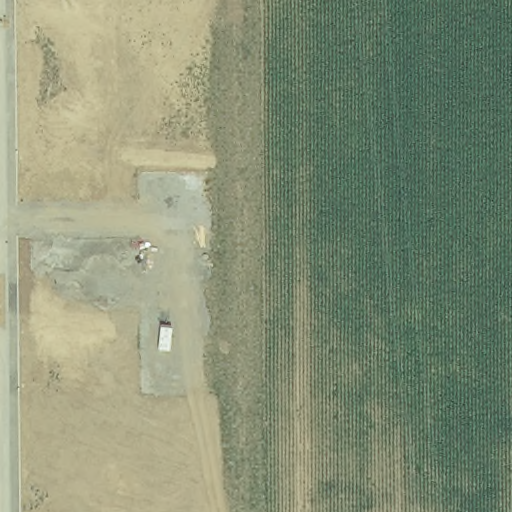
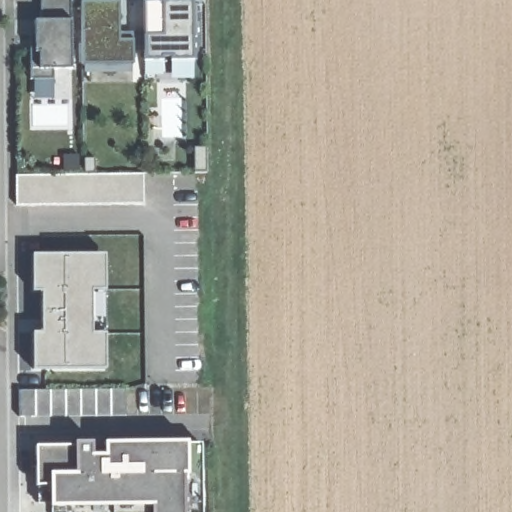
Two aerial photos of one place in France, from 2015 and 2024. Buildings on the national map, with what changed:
unchanged [(55,70),(55,80),(31,80),(31,50),(36,50),(36,20),(42,20),(42,0),(73,0),(73,70),(55,70)]
new [(168,0),(168,5),(198,5),(198,37),(195,37),(196,58),(164,59),(165,61),(146,61),(145,1),(168,0)]
new [(146,52),(136,52),(136,65),(83,65),(83,1),(121,1),(121,40),(121,32),(146,32),(146,52)]
new [(64,174),(63,170),(61,155),(94,157),(95,173),(143,172),(143,202),(14,205),(14,174),(64,174)]
new [(104,257),(106,371),(33,371),(33,336),(43,335),(41,292),(33,292),(32,255),(104,257)]
new [(127,416),(22,417),(21,390),(127,390),(127,416)]
new [(169,505),(53,506),(53,486),(38,486),(37,446),(76,445),(76,442),(94,442),(94,447),(106,447),(106,445),(125,445),(125,455),(136,455),(136,445),(154,445),(154,455),(166,454),(165,445),(203,444),(203,512),(170,512),(169,505)]

